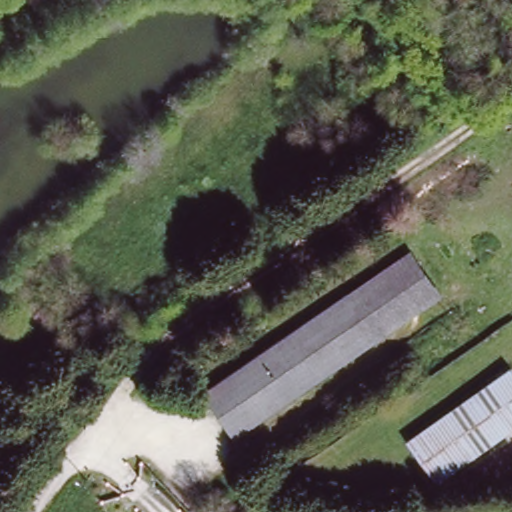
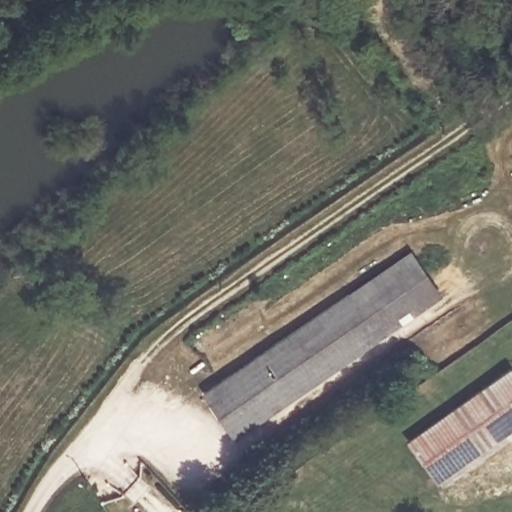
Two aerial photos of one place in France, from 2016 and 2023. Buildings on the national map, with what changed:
unchanged [(382,337),(352,292),(412,251),(443,296),(382,337)]
unchanged [(382,337),(238,434),(208,389),(352,292),(382,337)]
unchanged [(512,433),(437,485),(408,444),(512,371),(512,433)]

